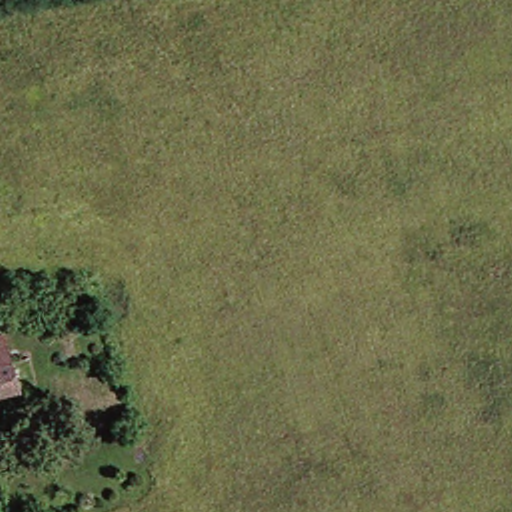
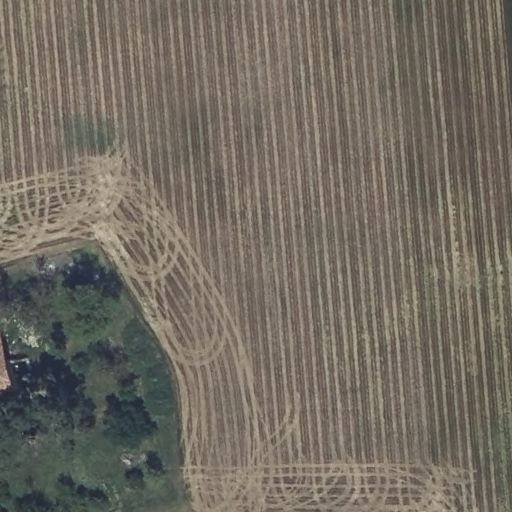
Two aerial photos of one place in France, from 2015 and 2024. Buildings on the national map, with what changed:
unchanged [(0,352),(2,359),(12,390),(0,393),(0,352)]

